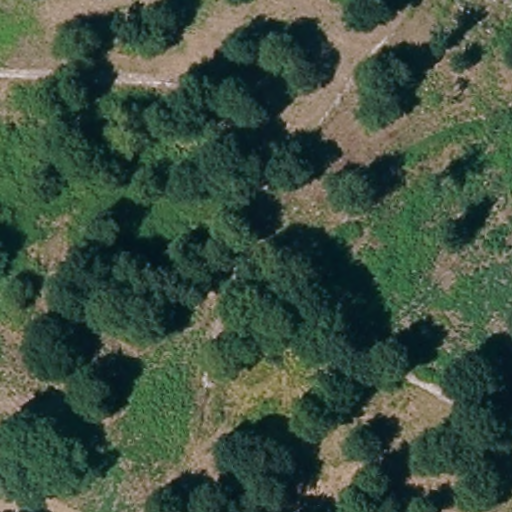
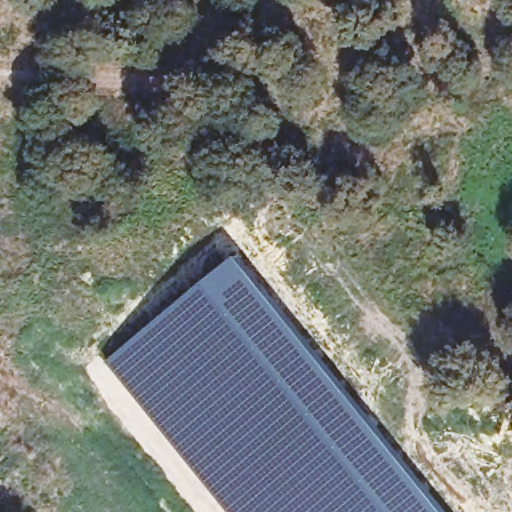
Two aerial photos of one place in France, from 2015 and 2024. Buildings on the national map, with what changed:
new [(157,316),(238,253),(370,415),(447,512),(227,512),(195,472),(105,359),(157,316)]

